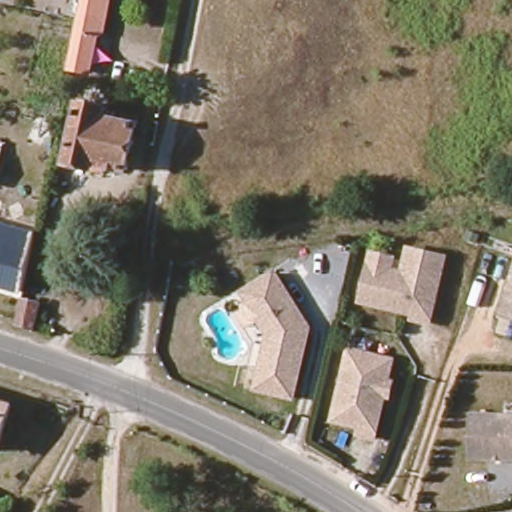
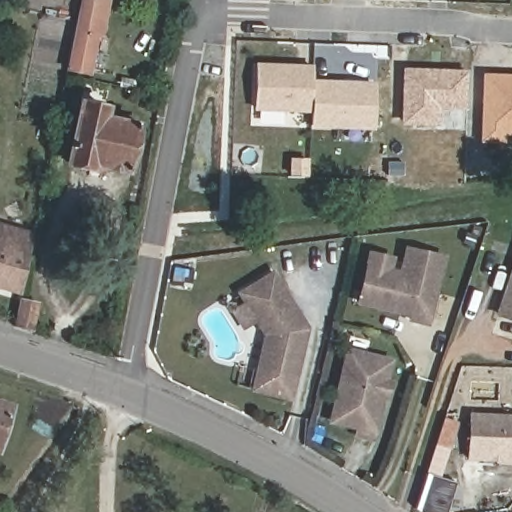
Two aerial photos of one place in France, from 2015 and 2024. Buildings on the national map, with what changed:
unchanged [(99,37),(93,41),(86,77),(63,73),(78,0),(92,0),(105,2),(99,37)]
new [(375,80),(375,129),(310,128),(311,113),(252,110),(254,62),(312,64),(312,78),(375,80)]
new [(465,110),(439,109),(439,126),(400,125),(402,67),(467,70),(465,110)]
new [(512,137),(507,137),(507,143),(479,142),(481,73),(512,73),(512,137)]
unchanged [(123,170),(89,163),(88,167),(64,162),(77,102),(103,107),(101,117),(120,122),(121,115),(133,118),(132,125),(134,126),(123,170)]
new [(12,293),(0,290),(0,223),(28,228),(12,293)]
demolished [(0,283),(0,238),(12,241),(0,283)]
unchanged [(355,302),(367,253),(389,258),(386,271),(397,273),(403,249),(440,258),(425,324),(407,320),(408,315),(401,314),(355,302)]
unchanged [(512,264),(512,320),(495,314),(512,264)]
unchanged [(255,371),(263,335),(236,294),(268,274),(300,322),(303,328),(301,337),(288,398),(261,392),(251,390),(255,371)]
unchanged [(30,331),(12,326),(18,298),(36,302),(30,331)]
unchanged [(354,435),(355,427),(328,421),(345,351),(387,361),(382,382),(388,383),(384,398),(379,396),(369,438),(354,435)]
unchanged [(7,404),(0,428),(0,402),(7,404)]
unchanged [(467,415),(512,417),(512,461),(465,459),(467,415)]

